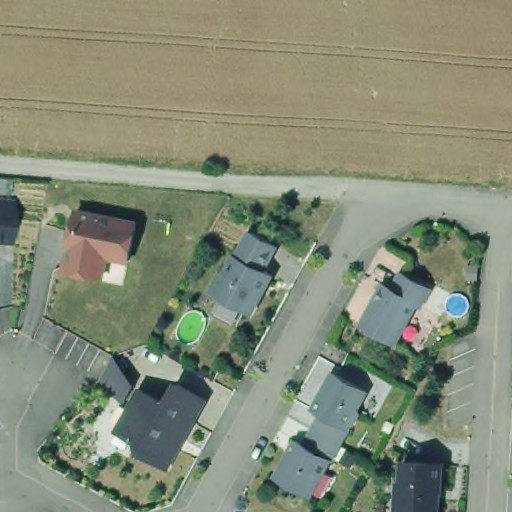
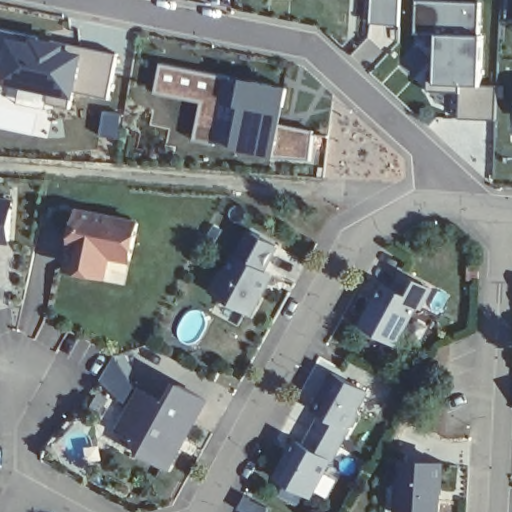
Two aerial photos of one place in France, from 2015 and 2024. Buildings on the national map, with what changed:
new [(400,35),(365,33),(363,12),(367,12),(368,0),(402,0),(400,35)]
new [(479,2),(475,35),(482,36),(481,85),(497,86),(495,120),(459,118),(461,92),(428,90),(429,72),(437,62),(439,35),(416,33),(417,0),(479,2)]
new [(39,42),(52,45),(52,40),(119,53),(109,99),(74,92),(71,109),(47,104),(51,90),(6,81),(7,73),(0,71),(0,29),(40,37),(39,42)]
new [(301,92),(295,127),(320,132),(315,163),(203,143),(209,105),(165,96),(170,66),(301,92)]
unchanged [(13,240),(0,239),(0,200),(16,201),(13,240)]
unchanged [(66,268),(67,261),(75,226),(79,227),(82,207),(79,207),(79,206),(137,217),(130,256),(125,280),(66,268)]
unchanged [(212,307),(220,292),(215,289),(213,282),(219,271),(226,269),(236,250),(239,252),(252,227),(276,241),(263,265),(269,267),(272,269),(262,287),(251,308),(246,306),(238,322),(212,307)]
unchanged [(416,299),(396,337),(362,320),(376,296),(380,293),(382,289),(380,287),(384,280),(392,285),(402,268),(430,284),(420,301),(416,299)]
unchanged [(322,415),(313,410),(334,373),(367,391),(357,408),(359,413),(352,425),(347,427),(349,428),(340,445),(314,430),(322,415)]
unchanged [(146,386),(172,401),(183,380),(210,395),(188,433),(184,431),(179,440),(182,442),(173,460),(147,445),(144,434),(125,423),(146,386)]
unchanged [(340,445),(331,461),(330,461),(310,497),(276,477),(296,441),(305,445),(313,431),(314,430),(340,445)]
unchanged [(434,489),(434,497),(439,497),(438,512),(400,512),(401,502),(396,497),(397,487),(402,482),(403,462),(442,465),(441,490),(434,489)]

